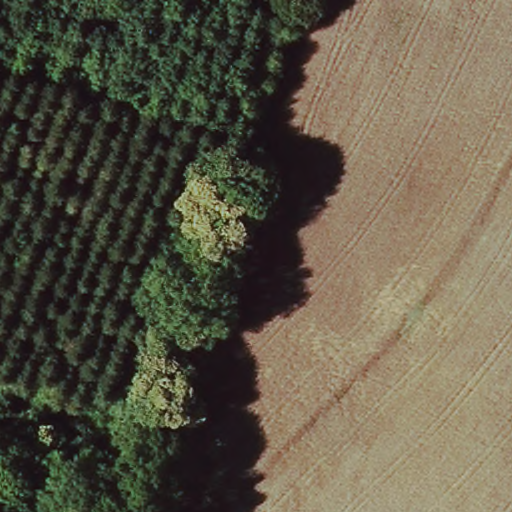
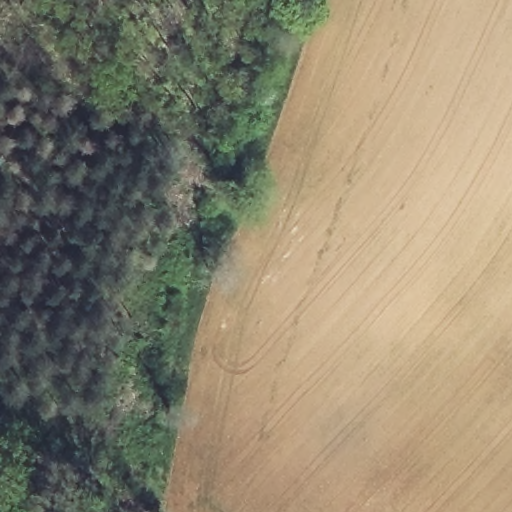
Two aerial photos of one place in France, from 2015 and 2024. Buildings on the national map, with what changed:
unchanged [(241,190),(246,191),(248,194),(251,198),(249,204),(246,207),(241,209),(240,210),(236,208),(233,205),(231,200),(231,195),(234,191),(238,190),(241,190)]

